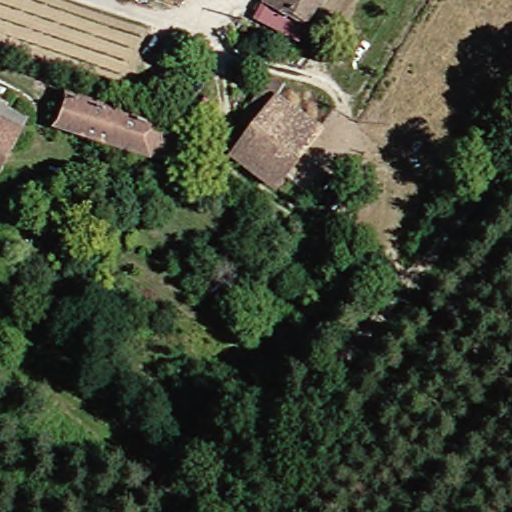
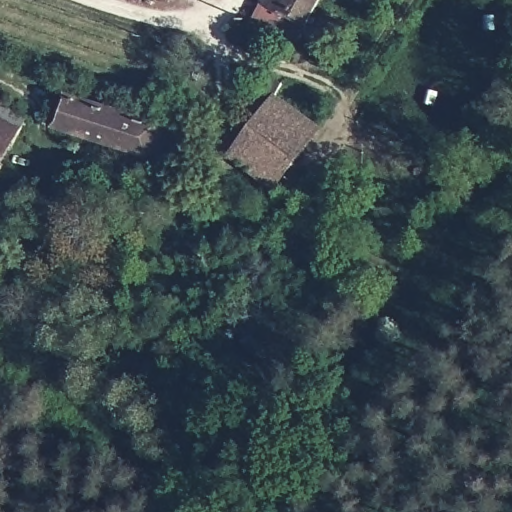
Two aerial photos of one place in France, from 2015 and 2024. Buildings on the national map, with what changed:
unchanged [(157,1),(155,0),(158,0),(157,1)]
unchanged [(288,41),(249,21),(259,0),(312,0),(288,41)]
unchanged [(227,162),(240,139),(229,129),(261,75),(278,85),(267,101),(310,129),(270,192),(227,162)]
unchanged [(169,167),(53,131),(62,100),(176,134),(169,167)]
unchanged [(0,187),(0,120),(23,129),(0,187)]
unchanged [(330,207),(315,196),(333,173),(347,186),(330,207)]

